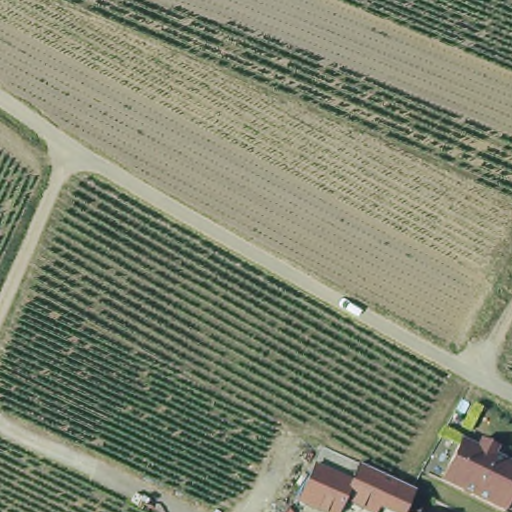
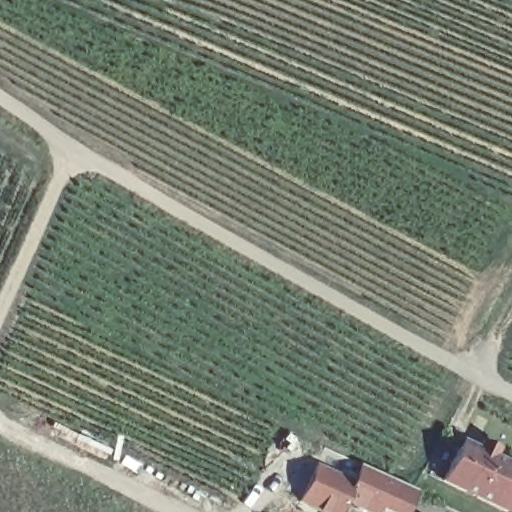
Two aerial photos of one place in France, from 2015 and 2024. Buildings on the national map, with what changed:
unchanged [(474,446),(489,454),(485,462),(512,474),(512,487),(500,512),(485,512),(434,486),(454,446),(469,454),(474,446)]
unchanged [(356,512),(339,506),(335,512),(304,512),(296,509),(308,474),(337,493),(351,472),(404,493),(394,512),(356,512)]

